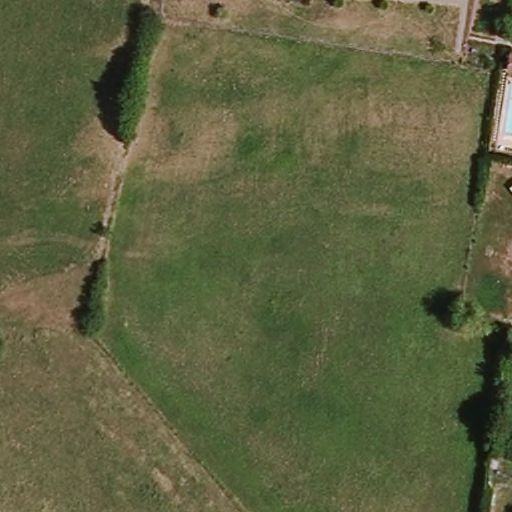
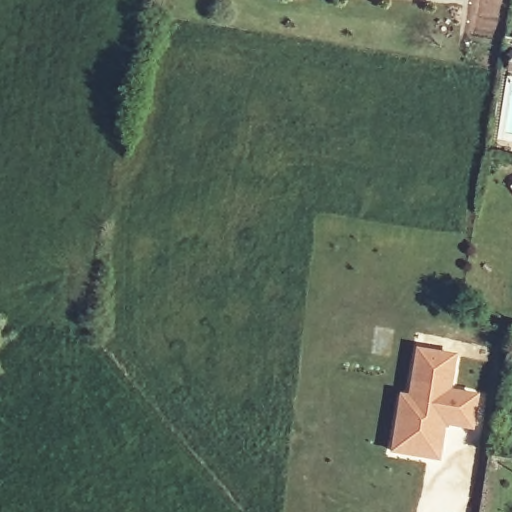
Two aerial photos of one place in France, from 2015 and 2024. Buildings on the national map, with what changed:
unchanged [(512,57),(512,71),(505,70),(509,57),(512,57)]
new [(427,456),(394,451),(397,424),(402,397),(411,398),(419,350),(455,356),(450,391),(477,395),(472,427),(445,422),(440,447),(439,458),(427,456)]

